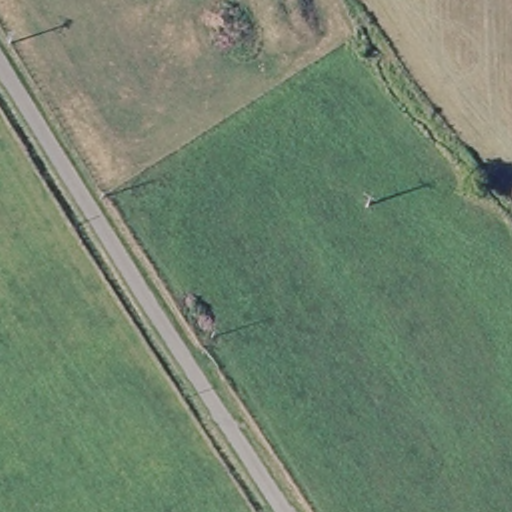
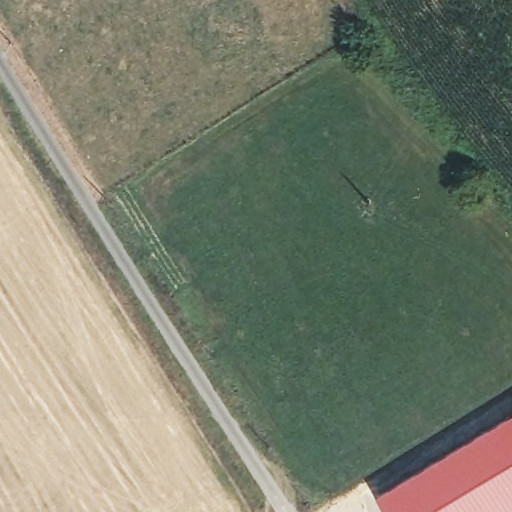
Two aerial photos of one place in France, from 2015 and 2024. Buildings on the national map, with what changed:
new [(501,417),(512,411),(512,512),(388,512),(377,493),(501,417)]

